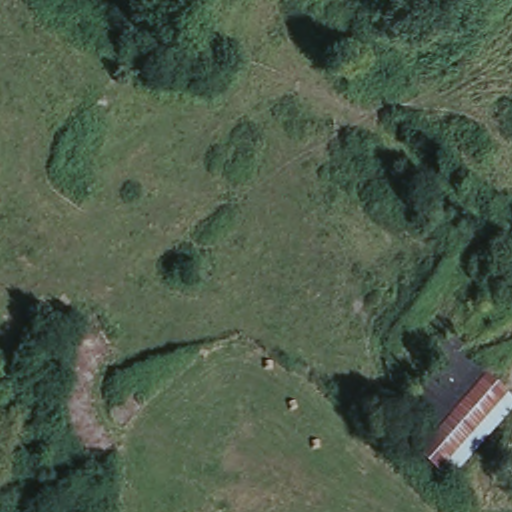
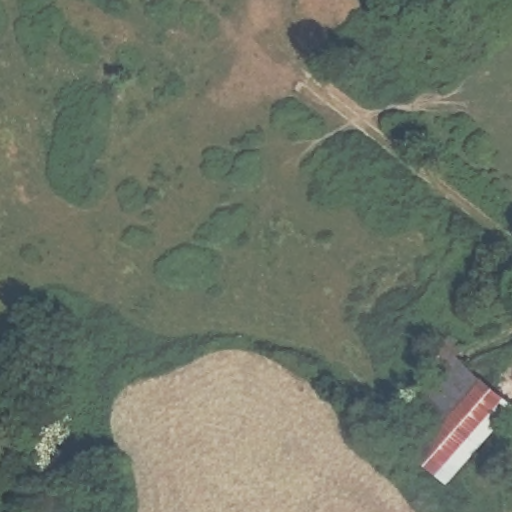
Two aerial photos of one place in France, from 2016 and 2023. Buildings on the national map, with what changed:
unchanged [(392,430),(399,421),(402,425),(447,377),(437,367),(461,344),(474,357),(468,364),(488,382),(417,453),(392,430)]
unchanged [(512,404),(512,409),(443,477),(417,453),(488,382),(512,404)]

